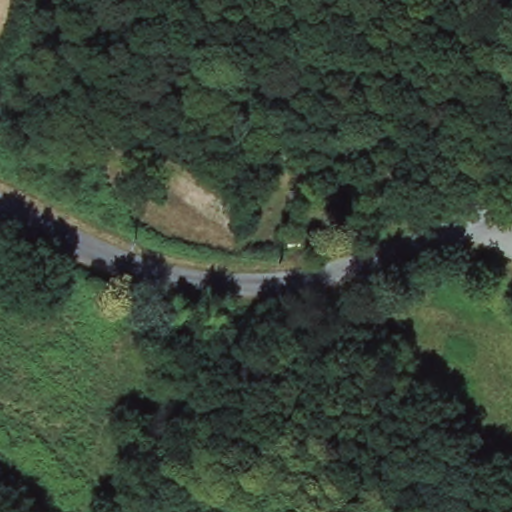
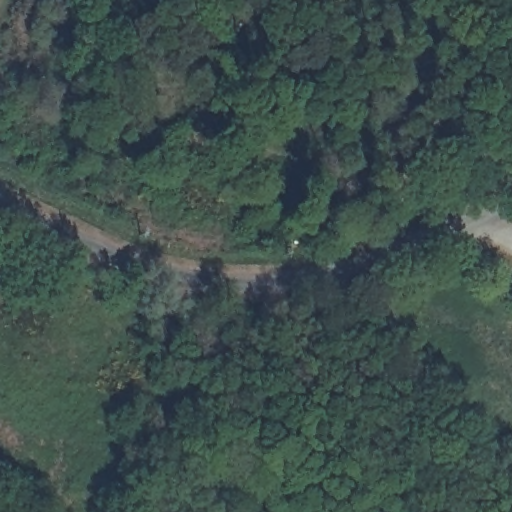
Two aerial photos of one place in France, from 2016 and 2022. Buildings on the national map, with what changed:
unchanged [(277,263),(276,243),(302,242),(302,263),(277,263)]

